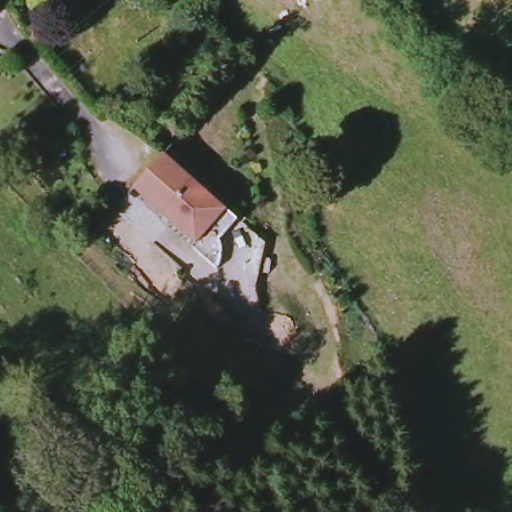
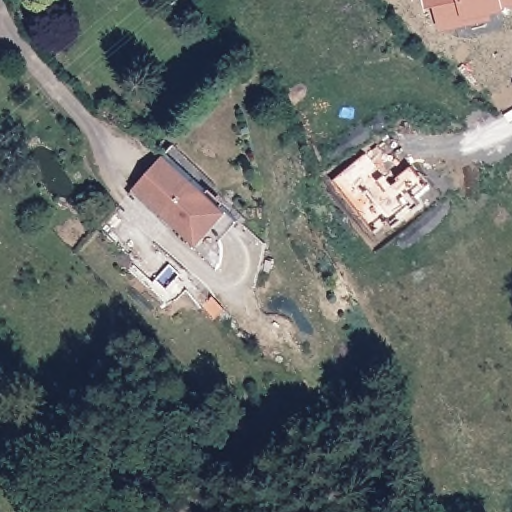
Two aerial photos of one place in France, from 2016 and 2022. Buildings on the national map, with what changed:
new [(505,14),(440,29),(435,4),(427,6),(426,0),(512,0),(512,2),(502,4),(505,14)]
unchanged [(154,156),(162,148),(235,214),(218,234),(228,245),(229,248),(229,250),(230,253),(230,255),(230,258),(229,261),(229,263),(228,265),(227,268),(226,270),(225,273),(224,275),(200,252),(204,248),(131,182),(154,156)]

